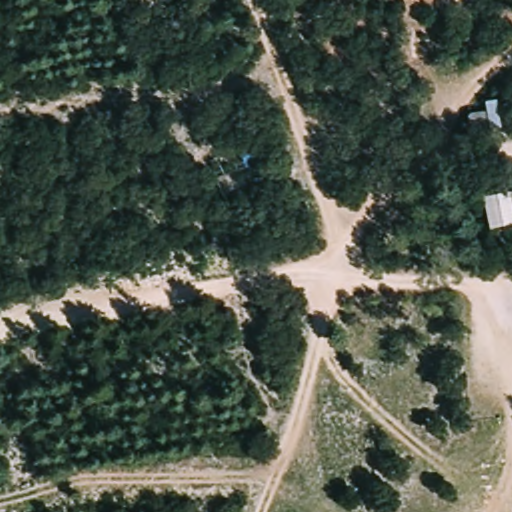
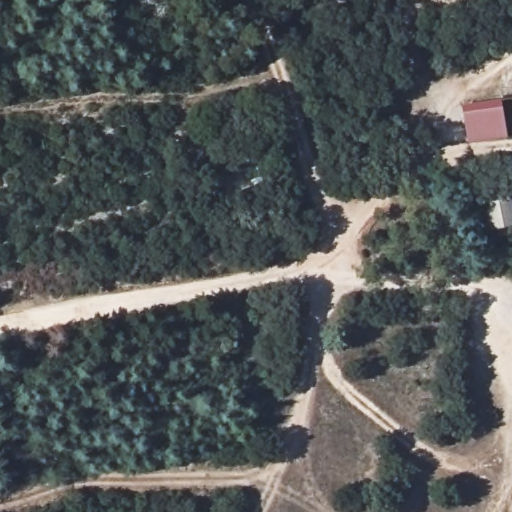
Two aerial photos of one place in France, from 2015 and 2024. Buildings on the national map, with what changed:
new [(502,98),(507,136),(467,143),(462,104),(502,98)]
unchanged [(484,230),(478,199),(507,192),(512,192),(512,224),(510,225),(484,230)]

